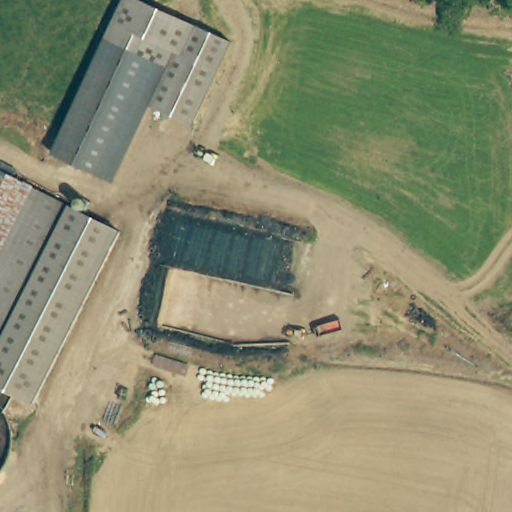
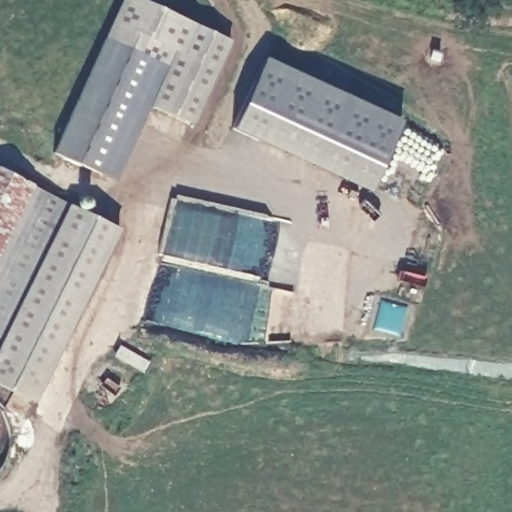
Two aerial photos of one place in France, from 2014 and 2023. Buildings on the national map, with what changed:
unchanged [(144,0),(175,14),(104,175),(88,168),(58,155),(126,0),(144,0)]
new [(192,21),(155,104),(118,182),(104,175),(175,14),(192,21)]
unchanged [(192,21),(234,39),(197,122),(155,104),(192,21)]
new [(266,59),(402,122),(369,194),(233,130),(266,59)]
unchanged [(0,198),(0,169),(24,182),(12,205),(0,198)]
unchanged [(24,182),(69,206),(0,344),(0,198),(12,205),(24,182)]
unchanged [(120,230),(33,402),(0,386),(0,344),(69,206),(120,230)]

